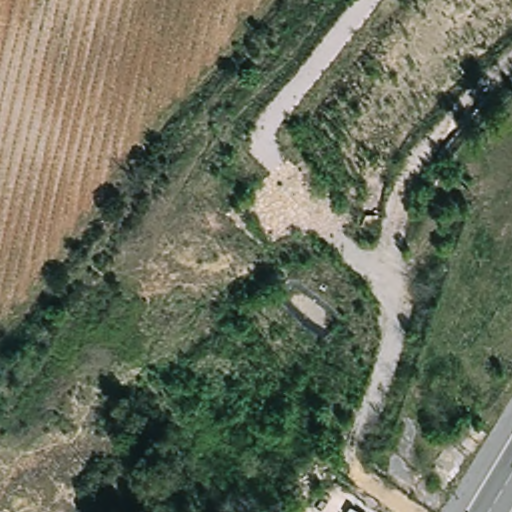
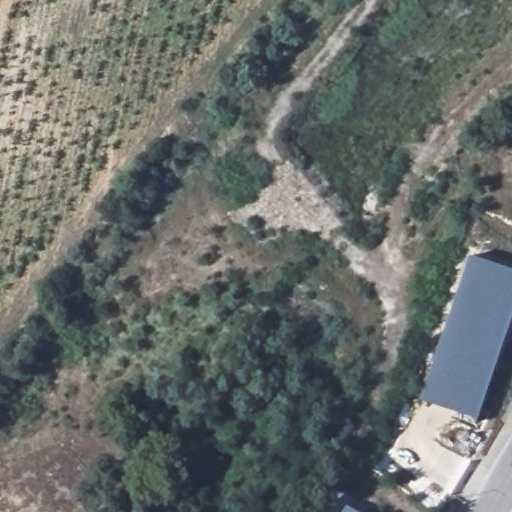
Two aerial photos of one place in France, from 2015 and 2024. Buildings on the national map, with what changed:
new [(512,269),(512,318),(478,420),(420,400),(469,256),(512,269)]
new [(349,507),(356,512),(345,512),(349,507)]

